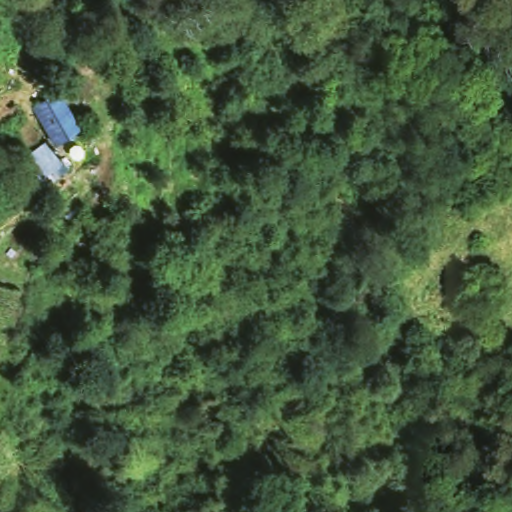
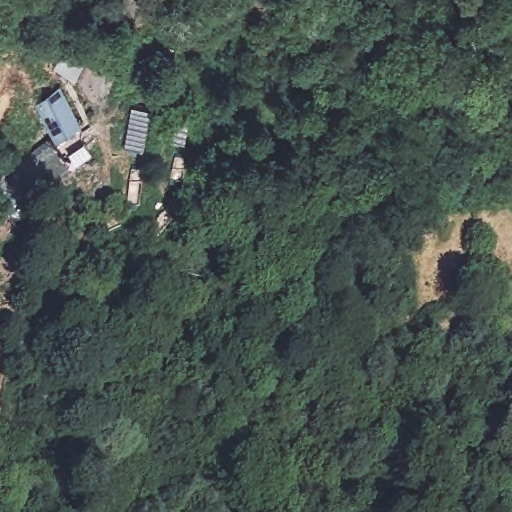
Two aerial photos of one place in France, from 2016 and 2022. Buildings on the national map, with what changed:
unchanged [(56,142),(31,110),(53,91),(81,126),(56,142)]

